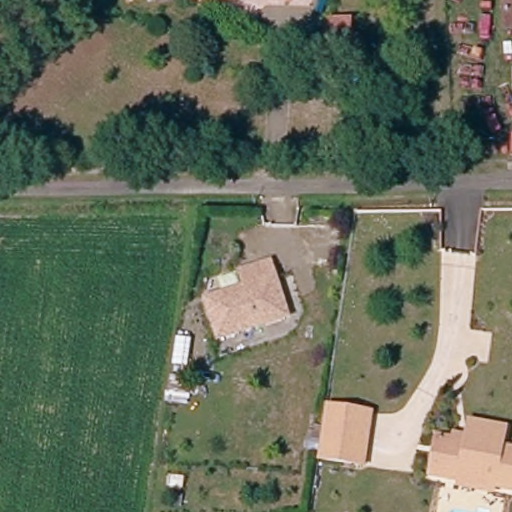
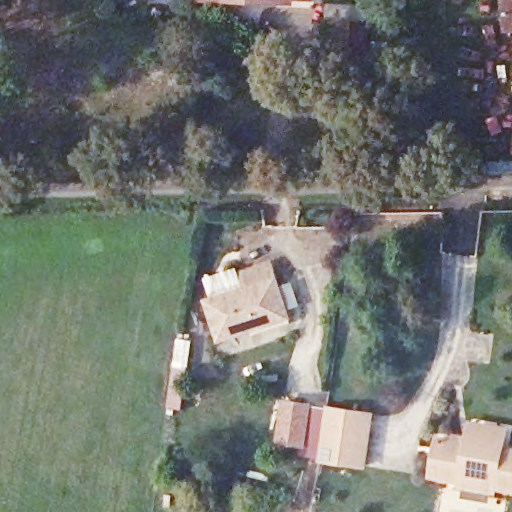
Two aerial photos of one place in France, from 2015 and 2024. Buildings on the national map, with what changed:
unchanged [(255,6),(214,6),(214,2),(195,2),(196,0),(295,0),(295,6),(255,6)]
unchanged [(509,16),(508,0),(512,0),(512,30),(510,31),(509,16)]
unchanged [(352,47),(325,46),(326,18),(354,20),(352,47)]
unchanged [(221,345),(209,307),(249,292),(243,277),(272,267),(290,322),(221,345)]
new [(316,458),(300,456),(301,447),(275,442),(283,399),(315,403),(314,405),(326,407),(327,405),(375,412),(374,417),(330,411),(321,462),(316,462),(316,458)]
unchanged [(365,468),(321,462),(330,411),(374,417),(365,468)]
unchanged [(460,488),(461,483),(430,478),(436,440),(454,442),(455,438),(467,440),(467,434),(505,442),(503,451),(512,453),(512,493),(494,491),(493,493),(460,488)]

